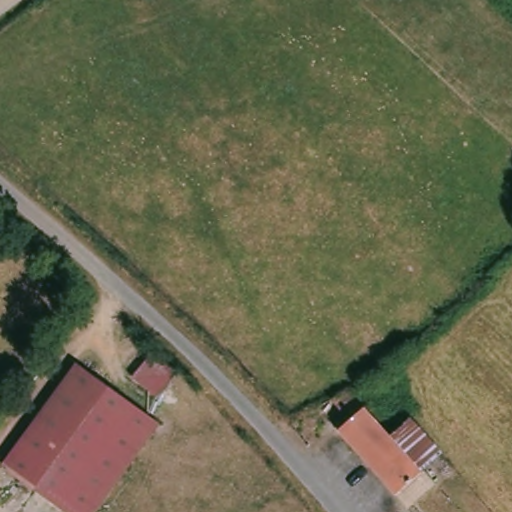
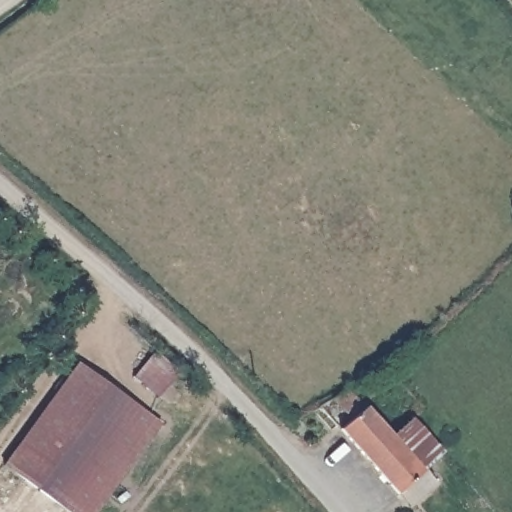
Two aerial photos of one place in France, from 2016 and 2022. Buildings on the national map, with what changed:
unchanged [(150,352),(174,373),(152,397),(129,375),(150,352)]
unchanged [(78,364),(160,423),(95,512),(67,512),(4,466),(78,364)]
unchanged [(410,504),(400,493),(398,494),(340,429),(355,417),(350,411),(345,414),(331,399),(349,389),(391,437),(412,419),(443,454),(425,470),(435,482),(410,504)]

